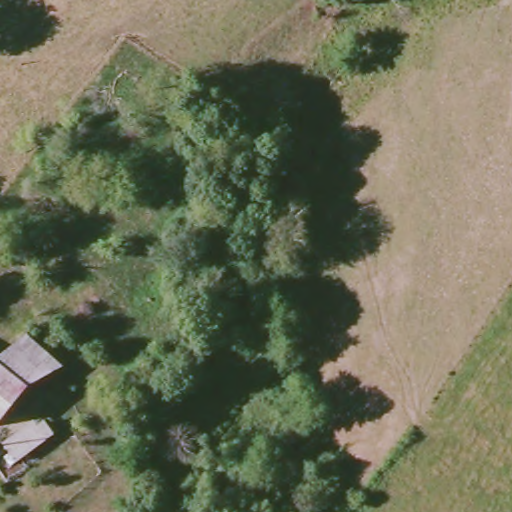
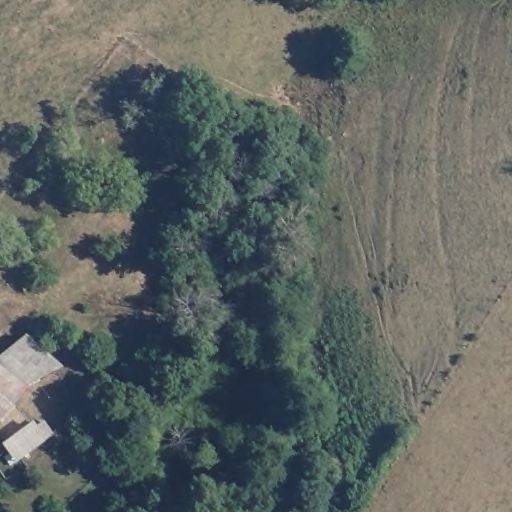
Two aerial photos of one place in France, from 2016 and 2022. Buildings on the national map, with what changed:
unchanged [(0,370),(0,358),(24,339),(50,364),(18,385),(0,370)]
unchanged [(0,410),(0,370),(18,385),(0,410)]
unchanged [(46,423),(17,450),(8,435),(29,415),(34,419),(44,412),(46,423)]

